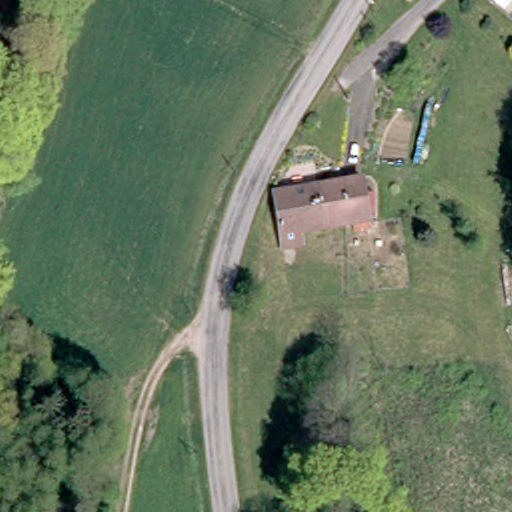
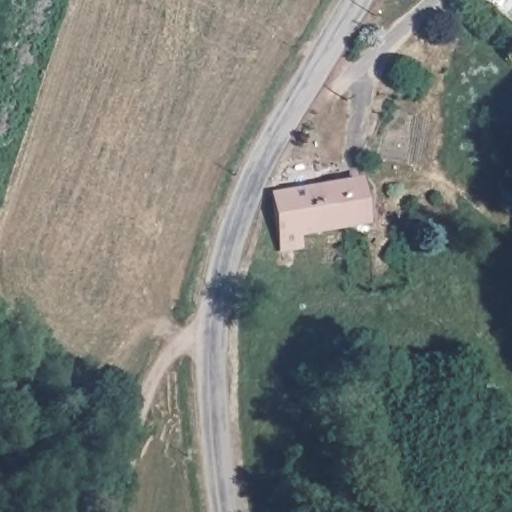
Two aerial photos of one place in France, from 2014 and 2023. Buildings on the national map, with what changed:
unchanged [(354,222),(310,235),(312,246),(292,250),(282,197),(345,179),(354,222)]

